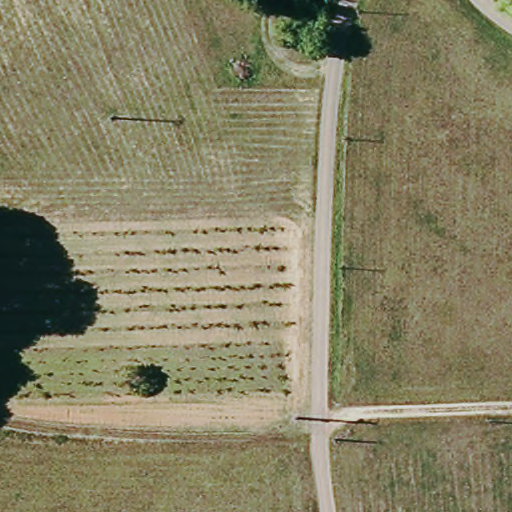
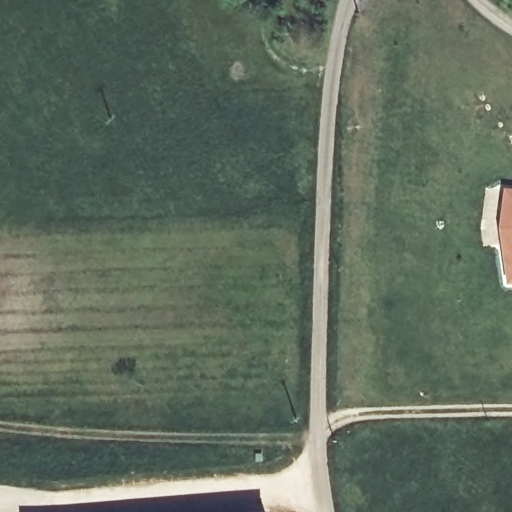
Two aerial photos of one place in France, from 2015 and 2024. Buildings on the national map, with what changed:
new [(512,189),(512,283),(507,283),(500,228),(505,189),(512,189)]

